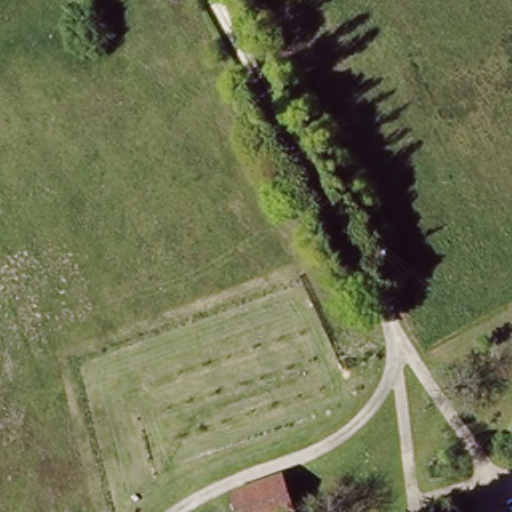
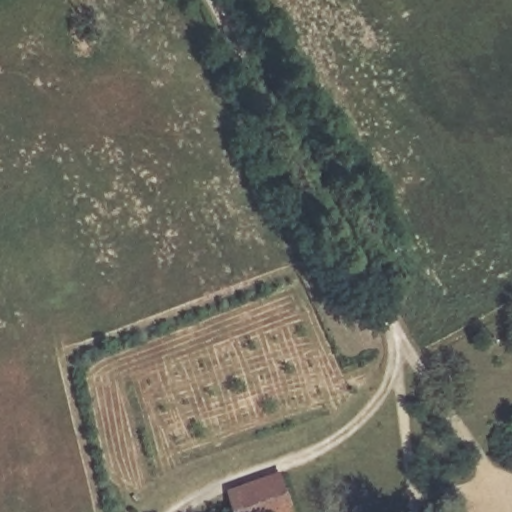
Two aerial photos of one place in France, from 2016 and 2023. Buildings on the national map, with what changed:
unchanged [(296,512),(231,512),(227,500),(288,481),(296,512)]

